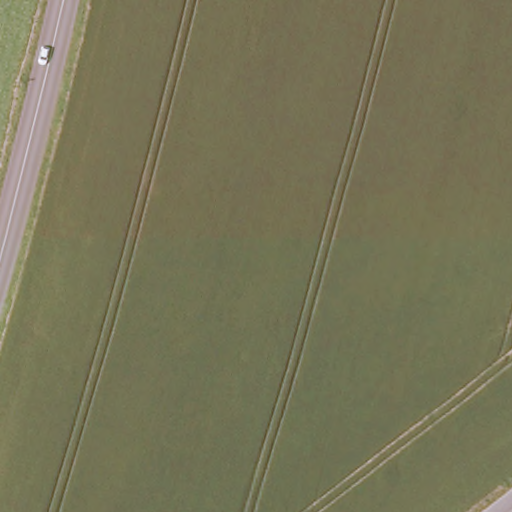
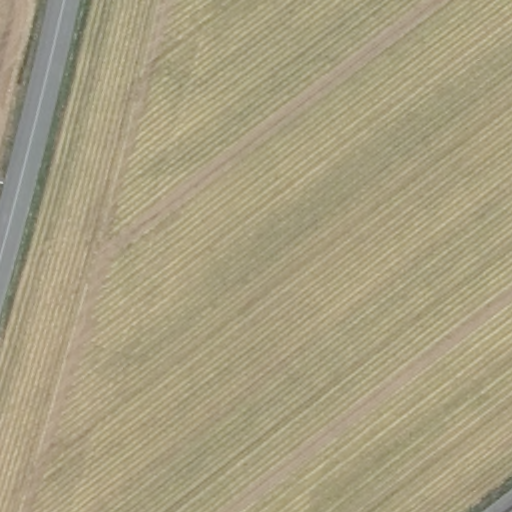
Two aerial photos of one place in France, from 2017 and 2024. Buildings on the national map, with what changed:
[]

